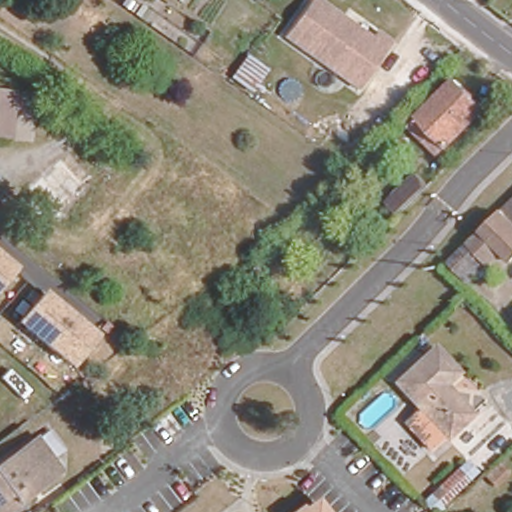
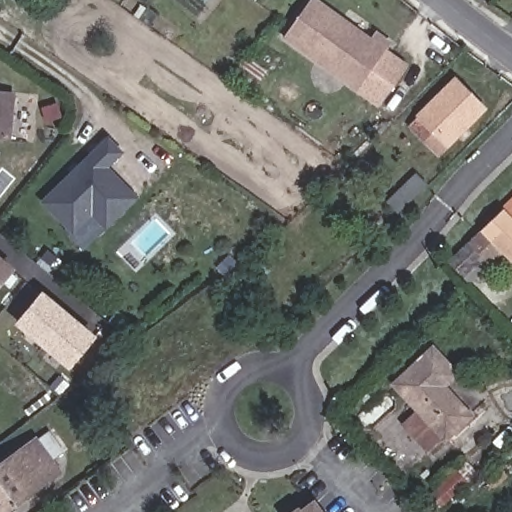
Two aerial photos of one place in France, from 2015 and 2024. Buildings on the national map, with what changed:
demolished [(5,17),(18,0),(20,0),(45,17),(31,36),(5,17)]
unchanged [(310,0),(319,0),(388,50),(357,93),(283,40),(310,0)]
unchanged [(157,12),(167,17),(157,29),(150,23),(157,12)]
unchanged [(438,153),(410,124),(457,76),(487,105),(438,153)]
unchanged [(0,134),(0,92),(16,93),(11,135),(0,134)]
new [(107,135),(123,152),(108,167),(139,196),(105,228),(92,215),(72,234),(41,202),(107,135)]
unchanged [(390,217),(380,207),(422,167),(431,176),(390,217)]
unchanged [(502,249),(470,280),(451,259),(512,200),(512,259),(502,249)]
unchanged [(0,289),(0,256),(17,270),(0,289)]
unchanged [(272,272),(255,287),(244,275),(262,258),(272,272)]
unchanged [(42,290),(100,337),(69,371),(15,325),(42,290)]
unchanged [(407,412),(417,403),(393,378),(432,342),(456,367),(443,379),(470,408),(444,432),(435,442),(407,412)]
unchanged [(50,458),(39,466),(40,468),(47,478),(2,512),(0,512),(0,462),(34,436),(50,458)]
unchanged [(429,512),(418,501),(457,464),(467,476),(430,512),(429,512)]
unchanged [(302,509),(315,499),(325,512),(291,512),(298,506),(302,509)]

